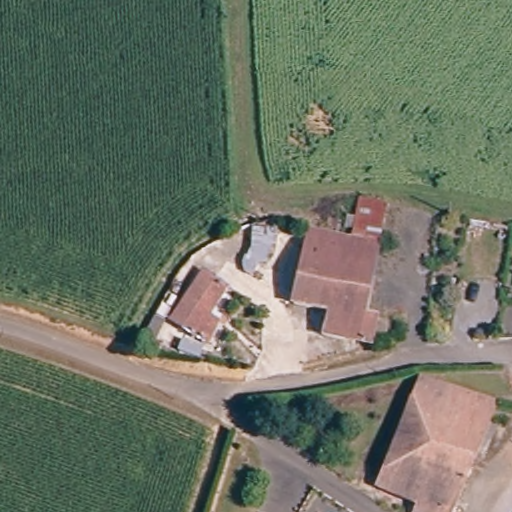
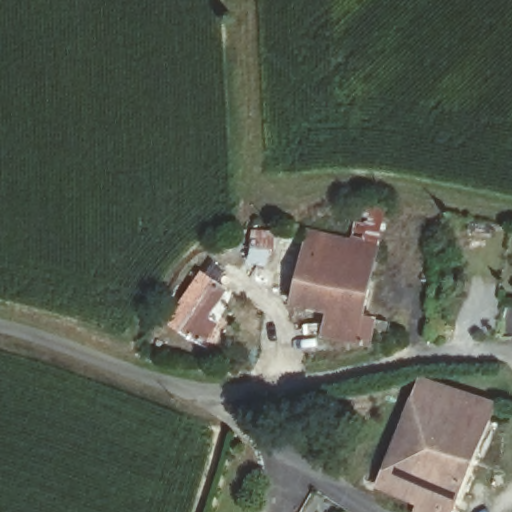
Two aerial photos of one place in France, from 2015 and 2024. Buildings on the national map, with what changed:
unchanged [(340,343),(338,349),(315,340),(324,313),(292,302),(309,230),(354,241),(364,207),(389,212),(360,322),(384,329),(378,347),(371,345),(368,351),(340,343)]
unchanged [(274,260),(253,258),(253,228),(275,230),(274,260)]
unchanged [(204,342),(189,333),(173,322),(197,283),(213,295),(202,316),(216,323),(204,342)]
unchanged [(381,488),(378,494),(360,486),(374,447),(389,454),(421,376),(494,405),(511,411),(508,425),(488,422),(449,512),(417,512),(419,503),(381,488)]

